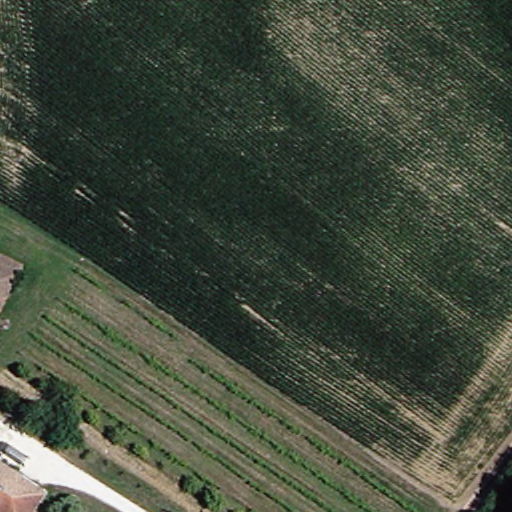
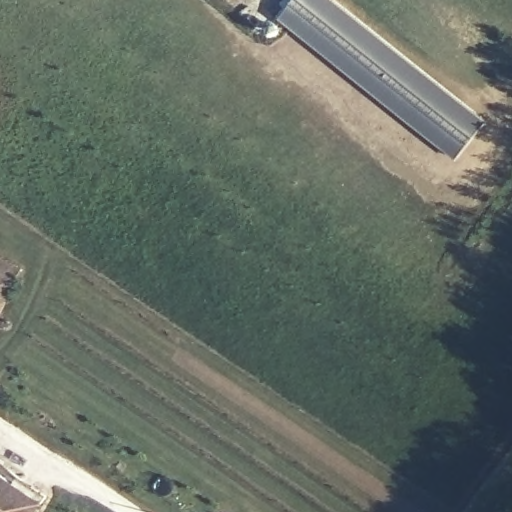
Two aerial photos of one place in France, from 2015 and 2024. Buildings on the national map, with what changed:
new [(280,19),(295,0),(335,0),(485,120),(457,158),(280,19)]
unchanged [(12,272),(0,293),(0,265),(12,272)]
unchanged [(23,512),(0,512),(0,481),(2,479),(32,498),(23,512)]

